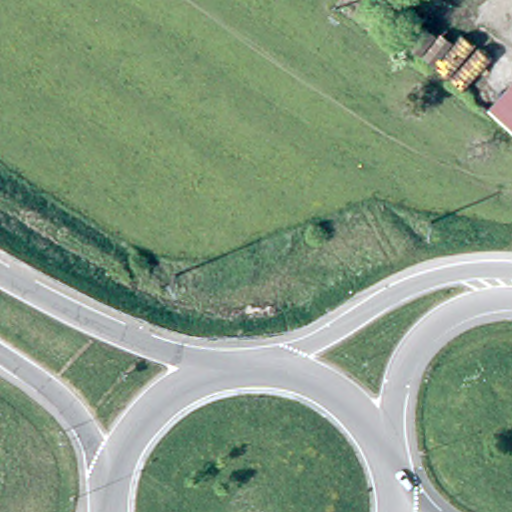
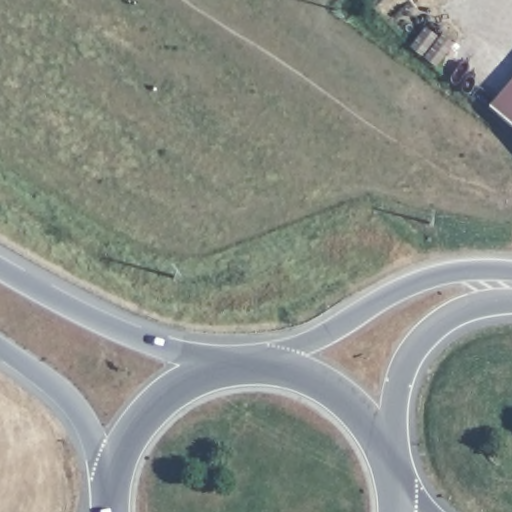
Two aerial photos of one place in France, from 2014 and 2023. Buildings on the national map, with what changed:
unchanged [(496,116),(512,94),(512,136),(492,121),(496,116)]

